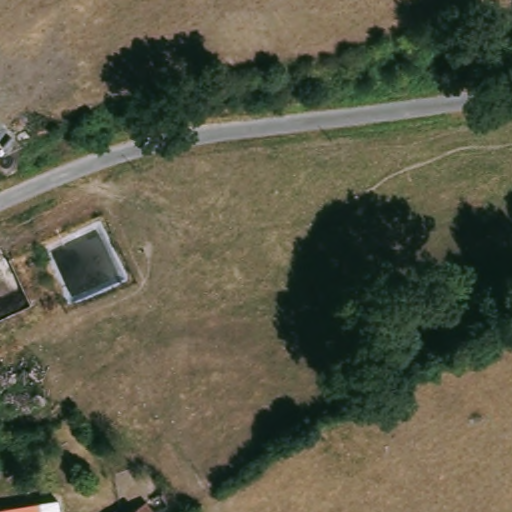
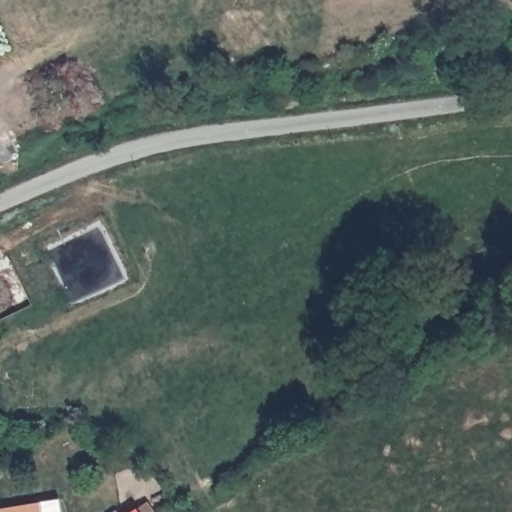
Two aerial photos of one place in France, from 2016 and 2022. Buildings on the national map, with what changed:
unchanged [(43,505),(58,503),(60,512),(0,512),(0,509),(42,501),(43,505)]
unchanged [(149,512),(133,512),(144,505),(149,512)]

